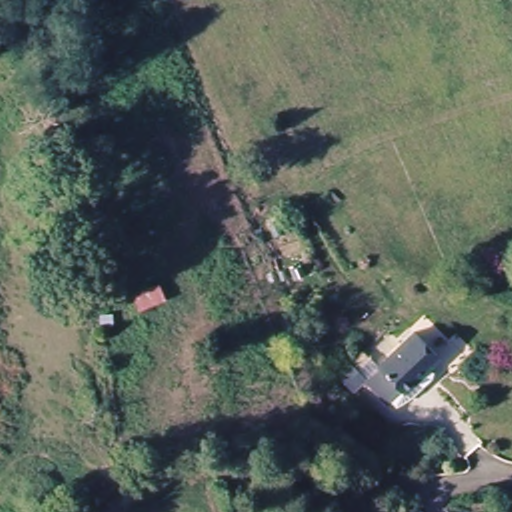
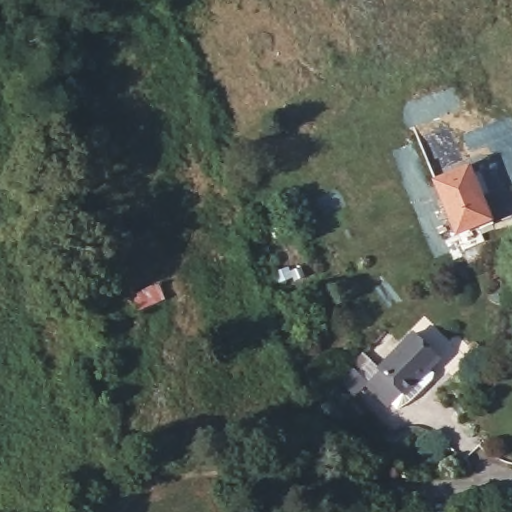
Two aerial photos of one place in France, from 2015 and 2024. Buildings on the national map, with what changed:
new [(470,162),(493,221),(454,235),(431,179),(470,162)]
unchanged [(408,410),(398,401),(377,382),(385,373),(380,369),(418,328),(446,353),(433,367),(442,374),(408,410)]
unchanged [(360,368),(377,382),(365,396),(348,380),(360,368)]
unchanged [(374,510),(396,507),(397,512),(374,512),(374,510)]

